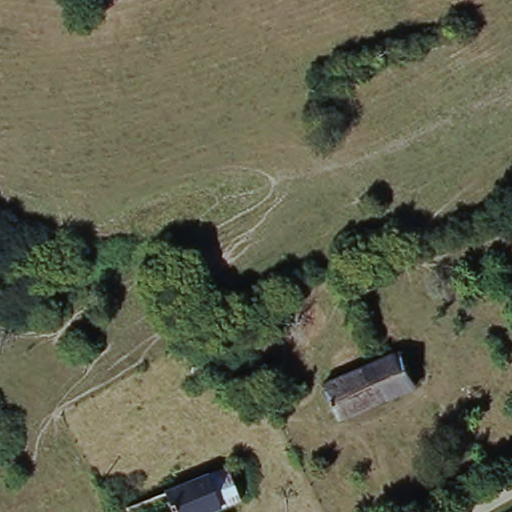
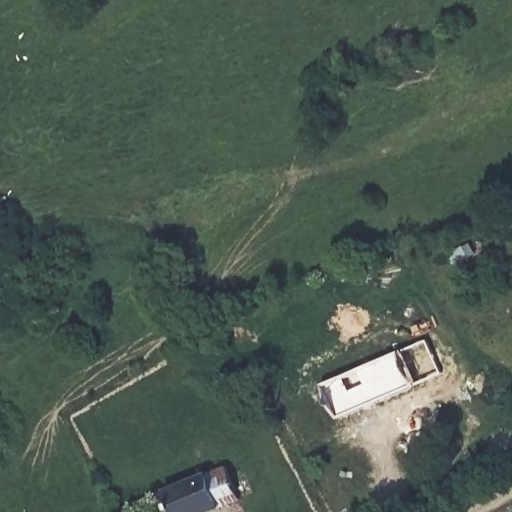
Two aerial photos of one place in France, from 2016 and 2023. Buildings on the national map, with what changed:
unchanged [(371,371),(393,360),(407,354),(423,388),(409,395),(333,430),(317,395),(371,371)]
unchanged [(150,501),(216,477),(233,470),(246,502),(230,508),(221,512),(154,512),(150,501)]

